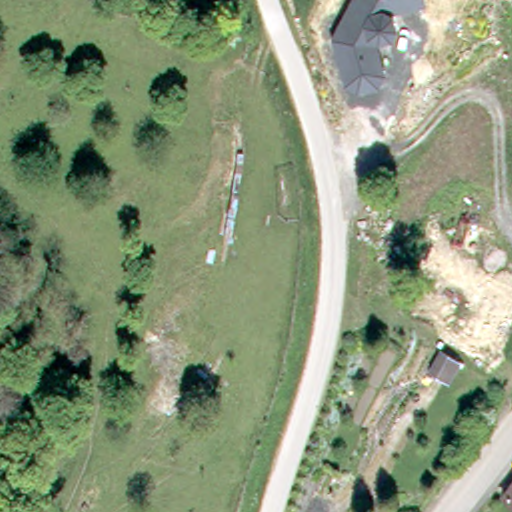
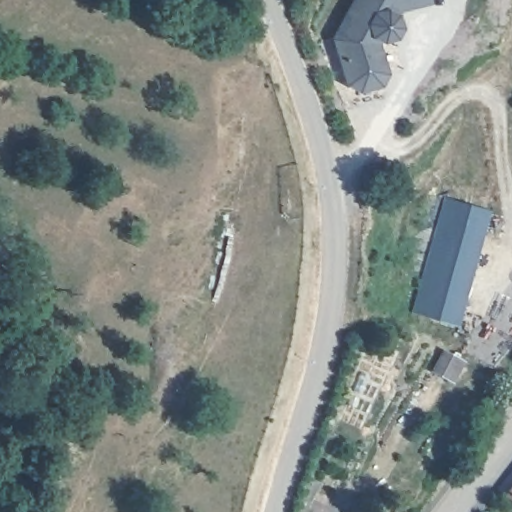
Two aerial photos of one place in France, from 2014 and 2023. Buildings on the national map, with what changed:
unchanged [(335,38),(354,0),(425,0),(426,2),(387,12),(375,45),(383,69),(377,84),(357,88),(348,85),(335,38)]
new [(454,325),(410,311),(444,197),(488,210),(454,325)]
unchanged [(438,348),(461,358),(450,381),(428,370),(438,348)]
unchanged [(495,492),(512,472),(512,506),(495,492)]

